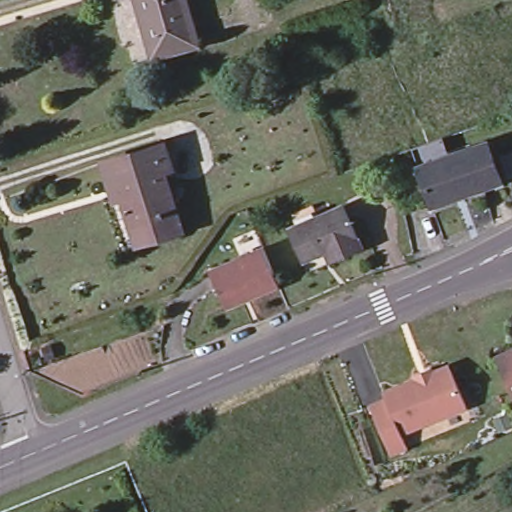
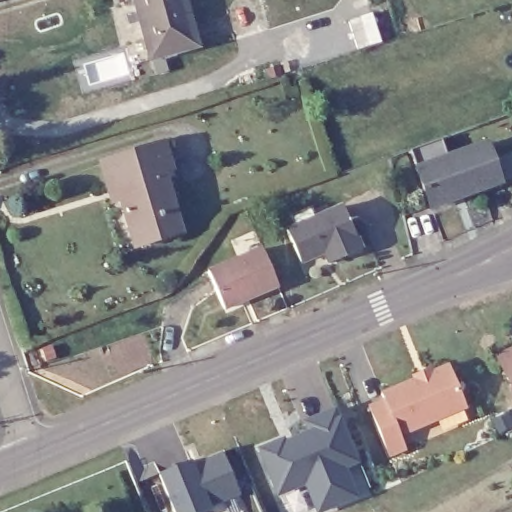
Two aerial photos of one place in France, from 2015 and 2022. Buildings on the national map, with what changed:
unchanged [(135,0),(184,0),(196,44),(151,57),(135,0)]
unchanged [(480,188),(478,184),(458,192),(460,196),(435,205),(422,166),(415,147),(446,136),(453,155),(491,141),(503,175),(503,176),(504,180),(480,188)]
unchanged [(101,166),(162,147),(170,173),(162,175),(180,235),(152,243),(146,226),(130,231),(117,189),(109,191),(101,166)]
unchanged [(512,153),(512,177),(511,177),(505,156),(512,153)]
unchanged [(366,252),(333,267),(328,255),(305,265),(291,233),(301,229),(296,217),(316,209),(321,220),(347,209),(366,252)]
unchanged [(208,270),(261,247),(277,283),(223,307),(208,270)]
unchanged [(502,351),(512,347),(512,372),(502,351)]
unchanged [(450,368),(465,405),(400,432),(405,446),(389,453),(369,404),(384,398),(381,391),(414,377),(412,373),(429,366),(431,370),(443,365),(450,368)]
new [(283,441),(293,438),(310,430),(306,421),(337,408),(358,458),(342,465),(354,494),(318,509),(306,480),(279,491),(261,448),(282,439),(283,441)]
new [(205,457),(222,450),(240,492),(210,504),(210,507),(198,512),(176,512),(158,471),(190,458),(192,463),(205,457)]

